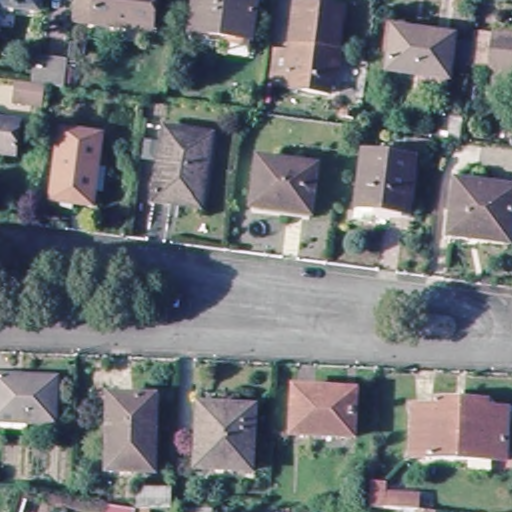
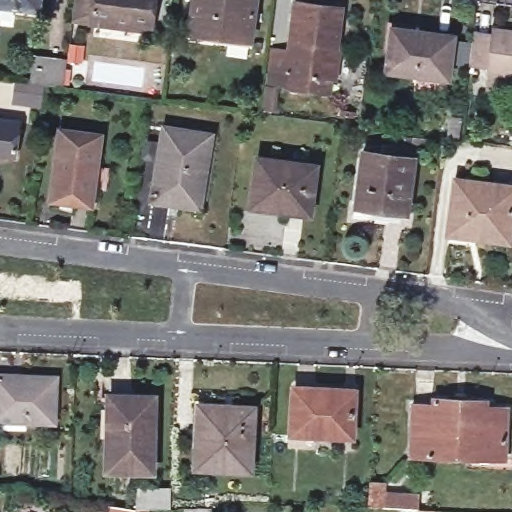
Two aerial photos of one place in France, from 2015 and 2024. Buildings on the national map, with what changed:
unchanged [(42,0),(40,13),(0,7),(0,0),(42,0)]
unchanged [(117,23),(116,29),(72,22),(76,0),(157,0),(153,27),(117,23)]
unchanged [(254,0),(249,41),(192,34),(197,0),(254,0)]
unchanged [(268,50),(285,52),(289,52),(290,44),(285,43),(291,5),(336,11),(331,50),(326,49),(325,56),(332,57),(330,81),(326,81),(324,95),(284,90),(286,75),(281,75),(265,72),(268,50)]
unchanged [(391,19),(419,22),(418,30),(453,35),(453,37),(473,40),(471,61),(471,62),(450,60),(447,72),(385,65),(391,19)]
unchanged [(490,68),(490,64),(471,61),(473,40),(475,29),(493,31),(495,26),(512,28),(512,92),(487,88),(490,68)]
unchanged [(35,58),(67,62),(64,87),(46,85),(43,106),(16,102),(19,82),(31,83),(35,58)]
unchanged [(451,117),(464,119),(461,141),(448,139),(451,117)]
unchanged [(0,166),(0,126),(24,129),(19,162),(2,160),(1,167),(0,166)]
unchanged [(60,130),(102,137),(93,207),(49,201),(60,130)]
unchanged [(161,131),(207,137),(197,206),(171,202),(170,207),(150,204),(161,131)]
unchanged [(363,152),(417,161),(410,214),(355,207),(363,152)]
unchanged [(259,161),(315,169),(309,214),(252,206),(259,161)]
unchanged [(447,237),(455,184),(512,192),(512,204),(507,239),(507,245),(467,239),(447,237)]
unchanged [(53,376),(50,417),(0,415),(0,372),(53,376)]
unchanged [(291,436),(293,392),(327,395),(353,396),(353,401),(351,438),(291,436)]
unchanged [(151,472),(105,469),(109,405),(110,398),(135,400),(156,401),(151,472)]
unchanged [(250,467),(199,463),(200,422),(197,422),(199,405),(207,405),(254,408),(250,467)]
unchanged [(408,412),(426,413),(427,406),(478,410),(478,416),(499,417),(496,462),(406,456),(408,412)]
unchanged [(404,512),(375,510),(376,482),(388,483),(388,493),(420,495),(420,512),(404,512)]
unchanged [(131,498),(132,483),(171,486),(170,500),(139,498),(131,498)]
unchanged [(199,510),(190,510),(190,501),(215,502),(214,512),(199,512),(199,510)]

